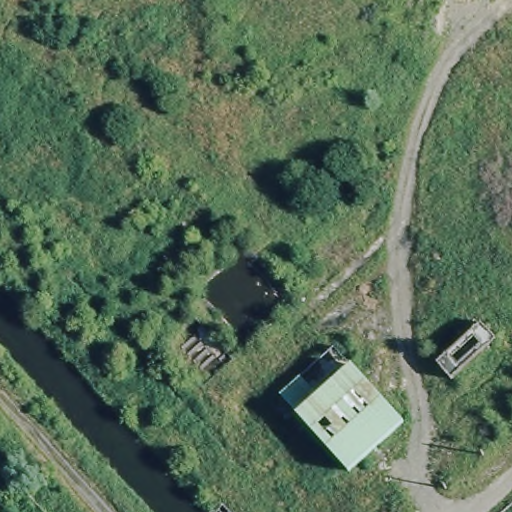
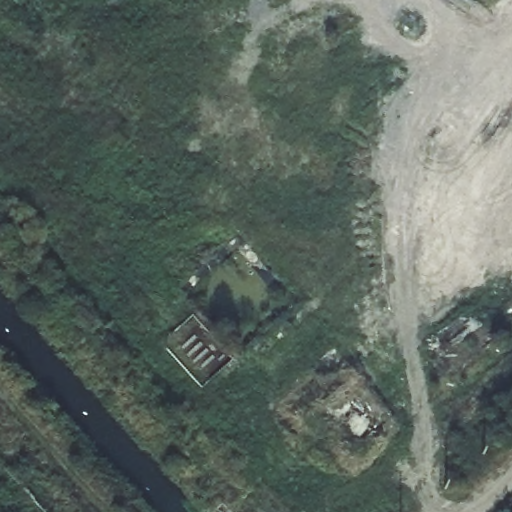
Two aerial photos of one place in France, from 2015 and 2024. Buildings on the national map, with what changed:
demolished [(480,323),(496,340),(450,380),(435,363),(480,323)]
demolished [(280,397),(335,348),(403,424),(348,473),(280,397)]

